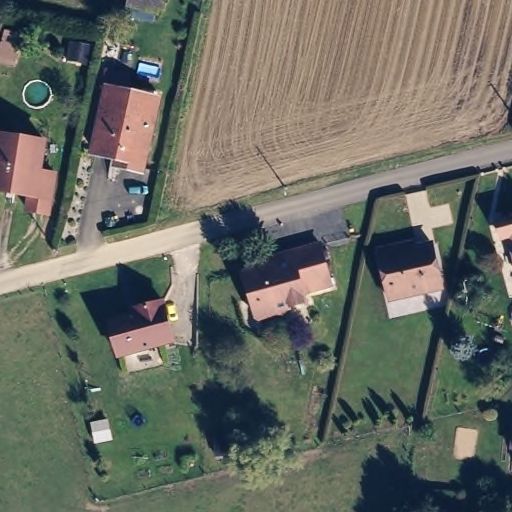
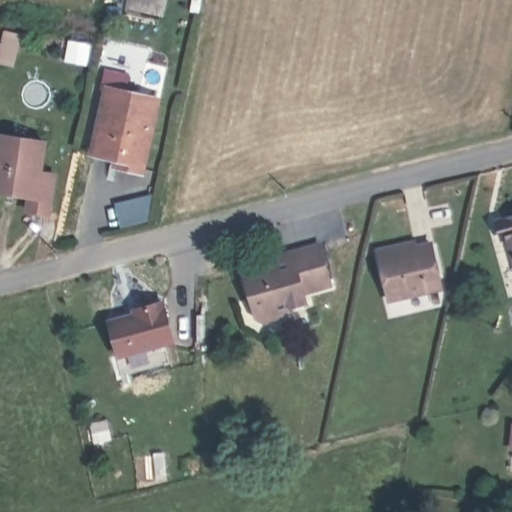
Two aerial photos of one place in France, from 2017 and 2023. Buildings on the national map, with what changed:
unchanged [(154,10),(124,2),(125,0),(157,0),(154,10)]
unchanged [(8,32),(26,36),(18,67),(0,62),(8,32)]
unchanged [(148,165),(123,160),(125,149),(99,142),(111,85),(163,95),(148,165)]
unchanged [(58,174),(51,213),(30,210),(32,195),(0,190),(0,156),(3,135),(48,140),(42,171),(58,174)]
unchanged [(509,239),(504,240),(499,219),(504,217),(512,215),(512,238),(509,239)]
unchanged [(387,300),(379,260),(376,249),(414,240),(416,246),(429,242),(439,287),(387,300)]
unchanged [(334,286),(306,294),(309,305),(288,310),(284,316),(266,322),(259,318),(247,274),(273,267),(271,260),(294,254),(323,245),(334,286)]
unchanged [(121,355),(113,320),(139,313),(138,308),(166,301),(176,340),(121,355)]

